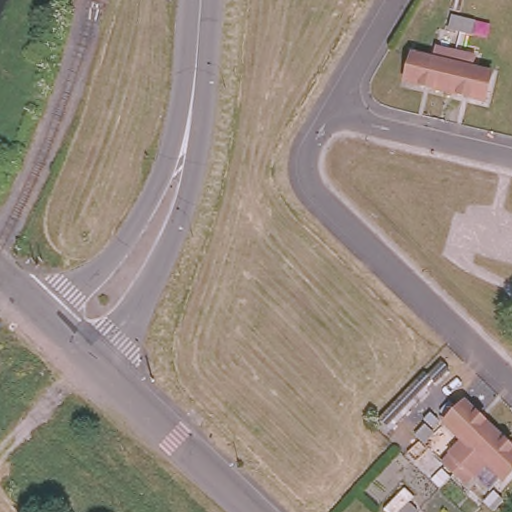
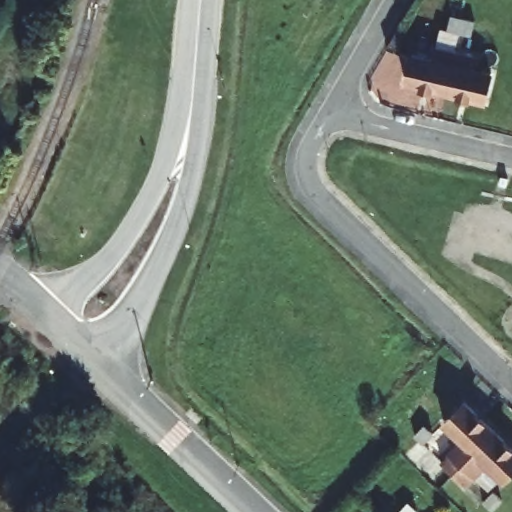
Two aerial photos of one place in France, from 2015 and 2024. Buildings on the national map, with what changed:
unchanged [(472,31),(460,29),(447,25),(450,15),(463,17),(475,20),(472,31)]
unchanged [(427,64),(430,49),(450,54),(440,96),(400,86),(407,59),(427,64)]
unchanged [(472,59),(469,73),(488,77),(480,105),(440,96),(450,54),(472,59)]
unchanged [(452,470),(441,459),(450,448),(450,447),(461,435),(444,418),(464,397),(494,426),(452,470)]
unchanged [(434,435),(425,445),(417,436),(425,426),(434,435)]
unchanged [(512,445),(512,466),(503,475),(487,460),(475,471),(474,470),(464,480),(452,470),(494,426),(512,445)]
unchanged [(502,499),(492,509),(483,500),(492,491),(502,499)]

